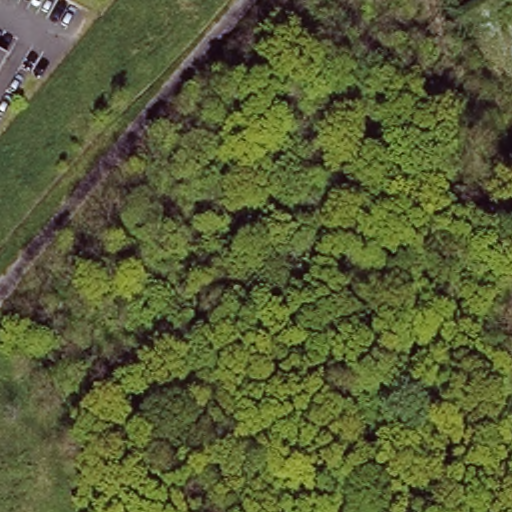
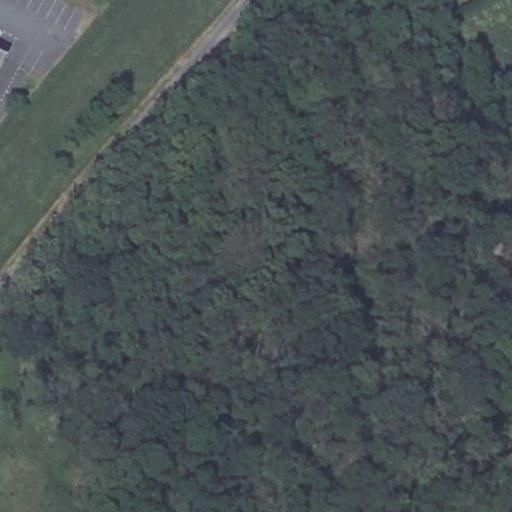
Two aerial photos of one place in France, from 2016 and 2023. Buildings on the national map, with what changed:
unchanged [(4,62),(0,70),(0,60),(4,62)]

